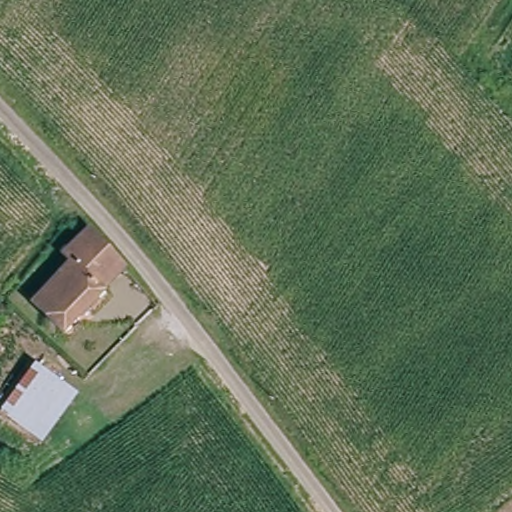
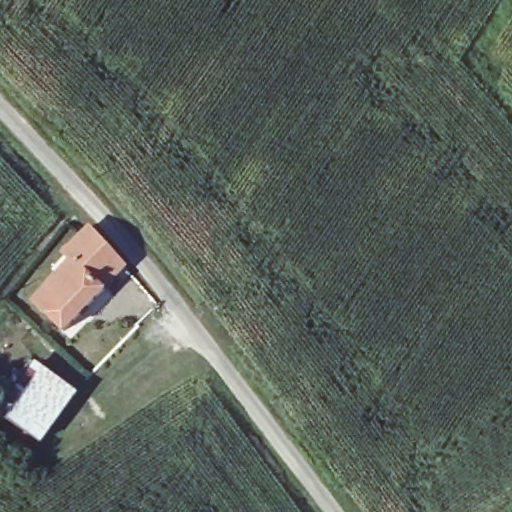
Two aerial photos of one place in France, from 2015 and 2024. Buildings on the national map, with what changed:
unchanged [(59,328),(31,303),(64,263),(58,257),(88,227),(124,263),(59,328)]
unchanged [(42,450),(0,412),(0,410),(41,361),(85,400),(42,450)]

